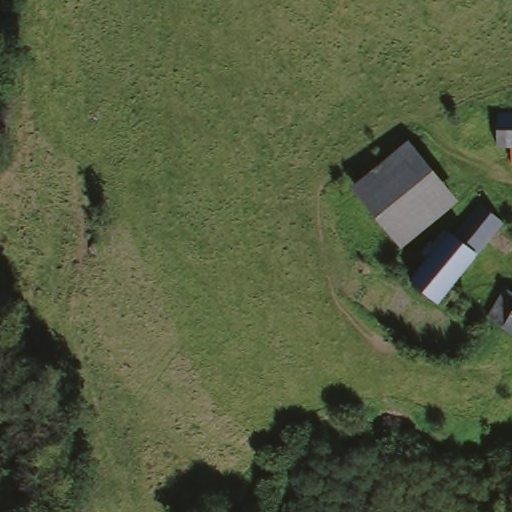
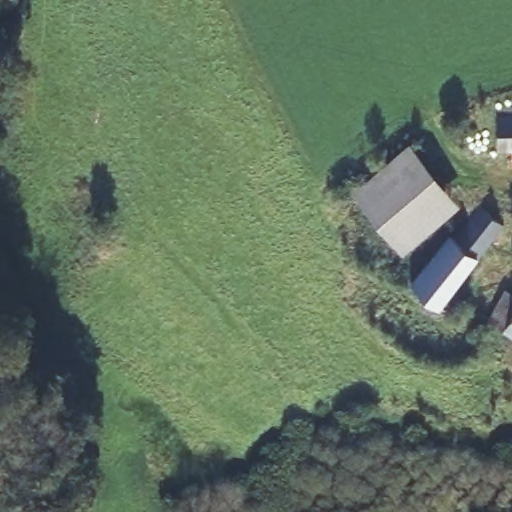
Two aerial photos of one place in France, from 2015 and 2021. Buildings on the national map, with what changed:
unchanged [(493,144),(491,119),(512,120),(512,153),(494,145),(493,144)]
unchanged [(349,191),(405,146),(457,207),(399,251),(349,191)]
unchanged [(496,236),(436,314),(409,293),(419,273),(423,264),(443,250),(447,238),(459,221),(468,209),(472,204),(496,236)]
unchanged [(496,321),(479,317),(495,290),(512,304),(512,331),(499,319),(496,321)]

